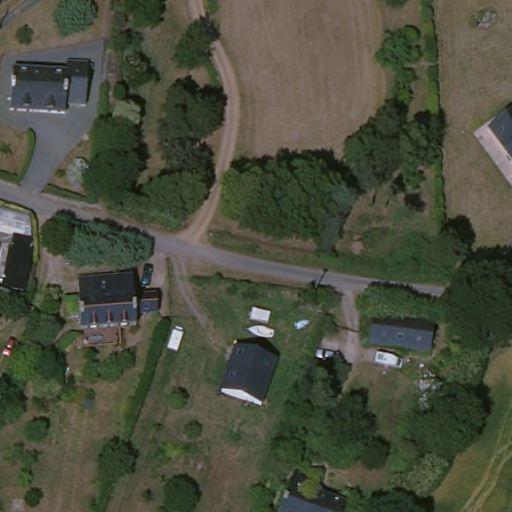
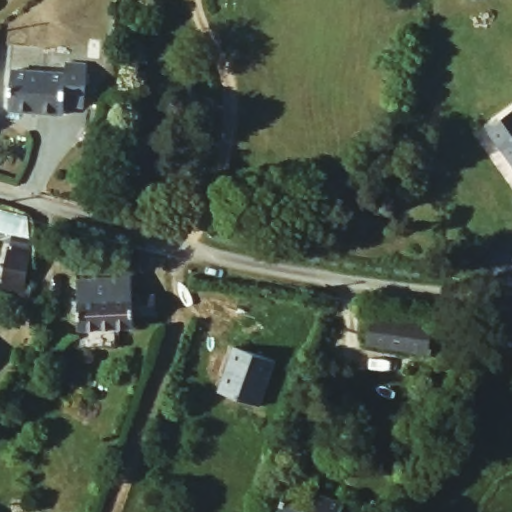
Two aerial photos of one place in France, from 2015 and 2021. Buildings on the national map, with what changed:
unchanged [(84,103),(63,104),(63,114),(11,116),(9,72),(61,70),(61,61),(83,60),(84,103)]
unchanged [(512,108),(512,169),(482,132),(512,108)]
unchanged [(0,295),(0,290),(8,246),(31,248),(23,297),(0,295)]
unchanged [(75,277),(131,282),(129,302),(148,305),(145,319),(129,319),(123,332),(95,329),(71,326),(75,277)]
unchanged [(431,326),(428,354),(366,348),(368,320),(431,326)]
unchanged [(233,394),(244,365),(243,364),(248,348),(289,364),(273,409),(233,394)]
unchanged [(277,512),(291,477),(310,485),(305,498),(342,512),(277,512)]

